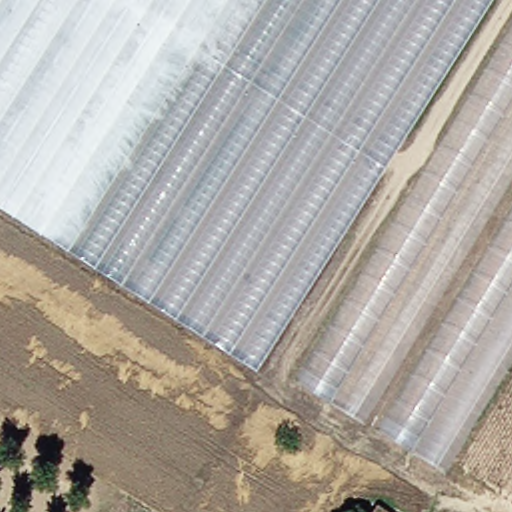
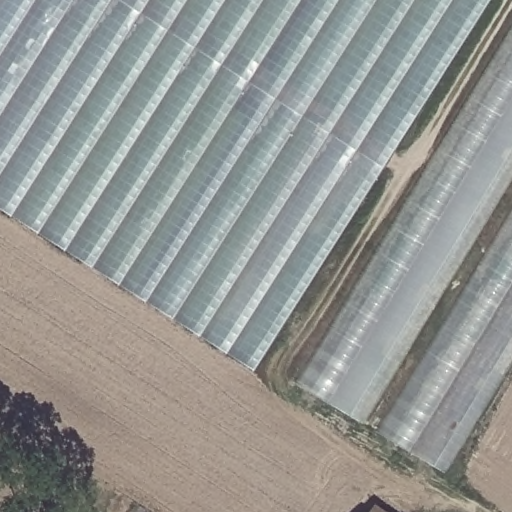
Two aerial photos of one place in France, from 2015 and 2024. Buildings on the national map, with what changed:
unchanged [(257,370),(0,207),(0,0),(493,0),(257,370)]
unchanged [(512,30),(512,177),(370,420),(300,379),(512,30)]
unchanged [(382,425),(512,214),(512,337),(437,459),(382,425)]
unchanged [(398,512),(377,512),(384,502),(398,512)]

